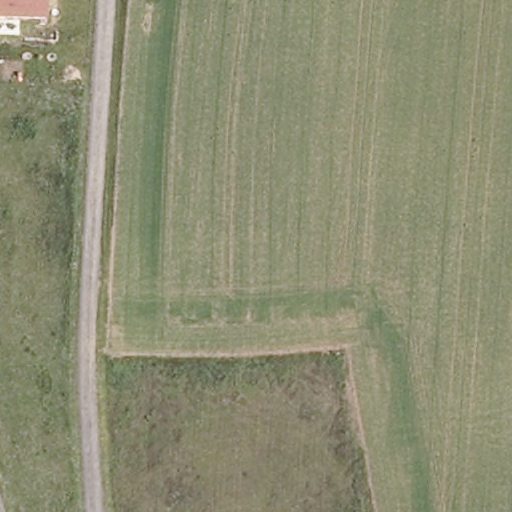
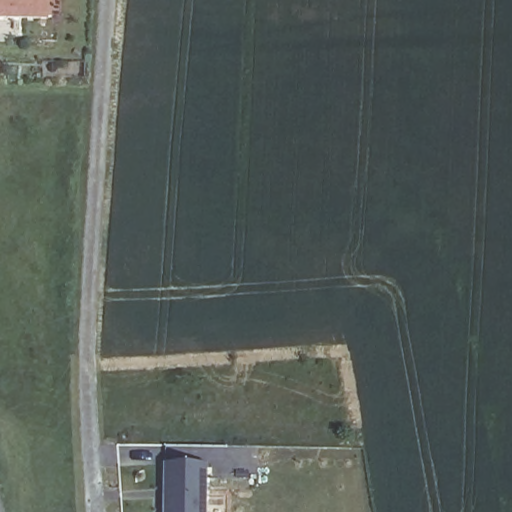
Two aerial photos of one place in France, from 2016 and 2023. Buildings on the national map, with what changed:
unchanged [(49,16),(0,16),(0,0),(49,0),(49,16)]
new [(207,464),(206,512),(164,512),(165,463),(207,464)]

